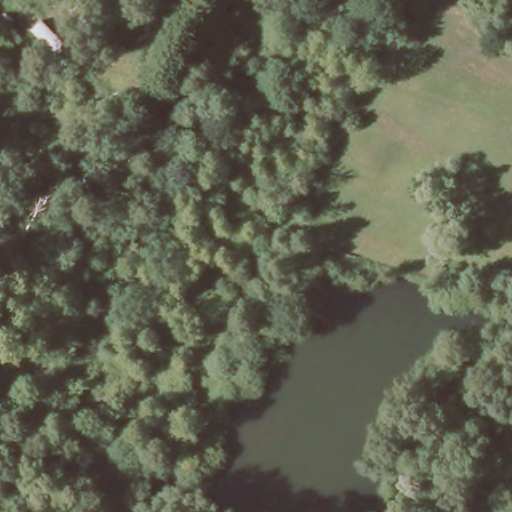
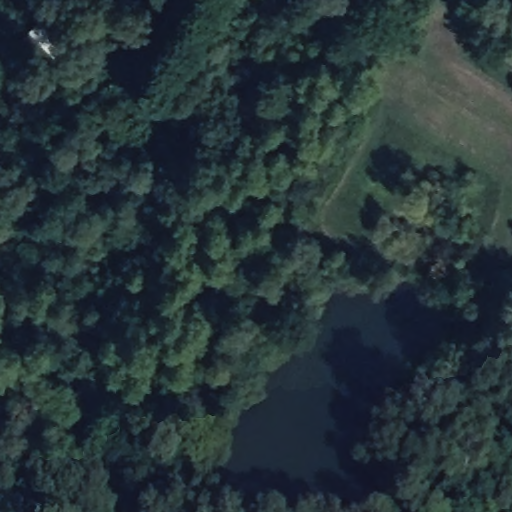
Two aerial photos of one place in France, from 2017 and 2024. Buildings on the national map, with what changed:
unchanged [(55,52),(35,57),(30,30),(48,25),(55,52)]

